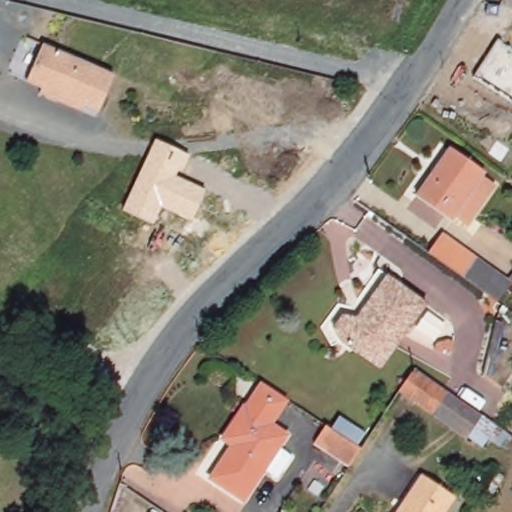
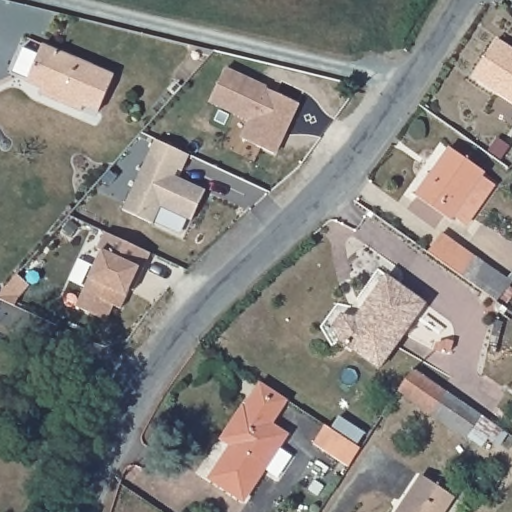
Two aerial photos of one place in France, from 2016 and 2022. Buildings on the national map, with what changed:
unchanged [(497,41),(512,51),(512,102),(472,77),(497,41)]
unchanged [(113,75),(97,112),(83,106),(81,112),(39,95),(42,88),(27,82),(43,45),(113,75)]
new [(276,154),(244,140),(252,120),(210,102),(224,70),(297,102),(291,117),(283,135),(276,154)]
unchanged [(156,140),(187,154),(177,177),(205,190),(192,221),(161,207),(154,224),(123,210),(156,140)]
unchanged [(484,174),(482,177),(495,186),(468,226),(455,217),(452,220),(423,201),(417,196),(437,167),(449,150),(484,174)]
new [(131,289),(122,309),(115,305),(107,321),(77,307),(102,251),(98,250),(106,232),(152,254),(144,270),(134,291),(131,289)]
unchanged [(442,234),(512,283),(512,285),(497,302),(428,252),(442,234)]
unchanged [(351,318),(381,276),(421,305),(375,369),(336,341),(328,328),(337,315),(351,318)]
unchanged [(493,445),(472,430),(465,442),(398,396),(407,383),(413,373),(480,419),(501,434),(493,445)]
unchanged [(223,439),(243,409),(245,410),(262,384),(266,386),(267,388),(287,400),(270,425),(286,435),(278,447),(292,457),(278,478),(263,469),(243,500),(212,480),(222,464),(224,465),(235,447),(223,439)]
unchanged [(361,448),(350,466),(315,443),(326,425),(361,448)]
unchanged [(455,496),(445,512),(397,512),(422,475),(455,496)]

